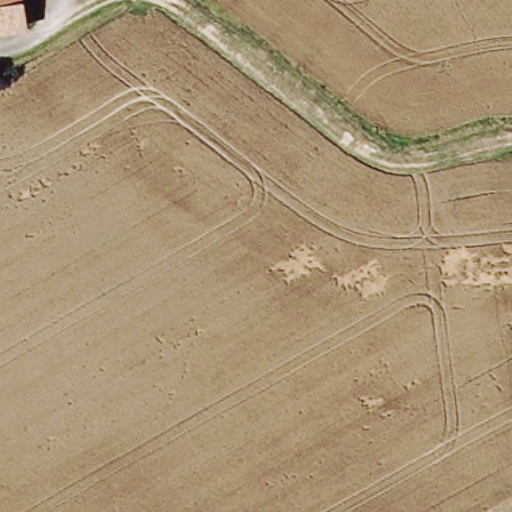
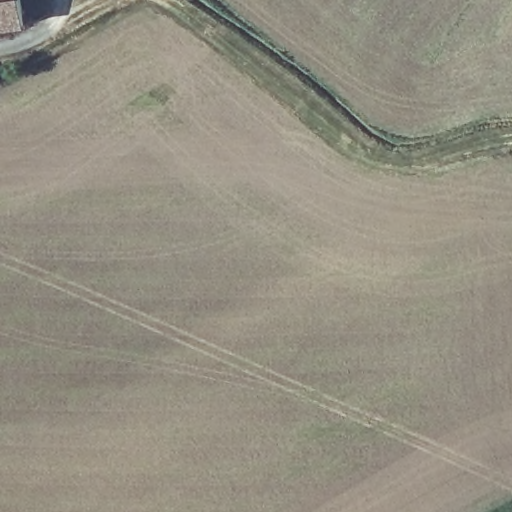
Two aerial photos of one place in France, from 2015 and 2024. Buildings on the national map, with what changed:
unchanged [(0,0),(21,0),(24,29),(0,31),(0,0)]

